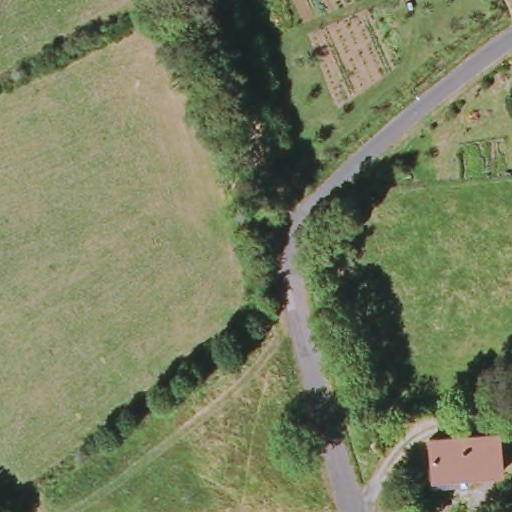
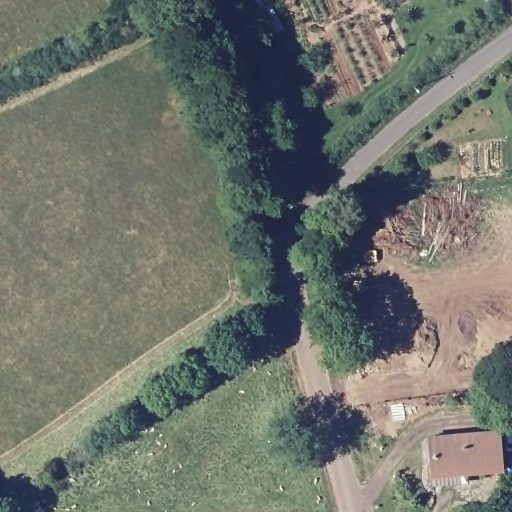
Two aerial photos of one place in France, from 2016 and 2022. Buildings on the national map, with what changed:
unchanged [(426,440),(497,432),(503,472),(432,480),(426,440)]

